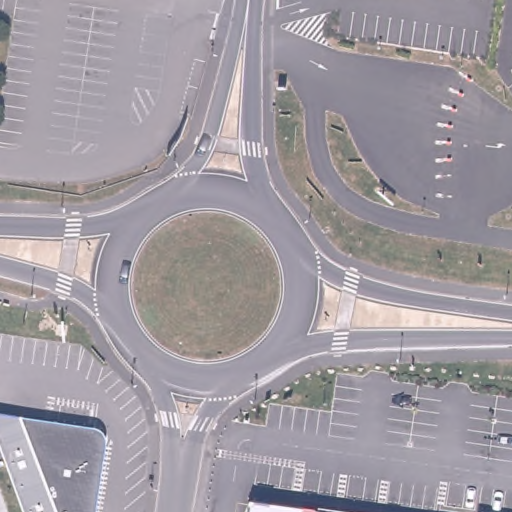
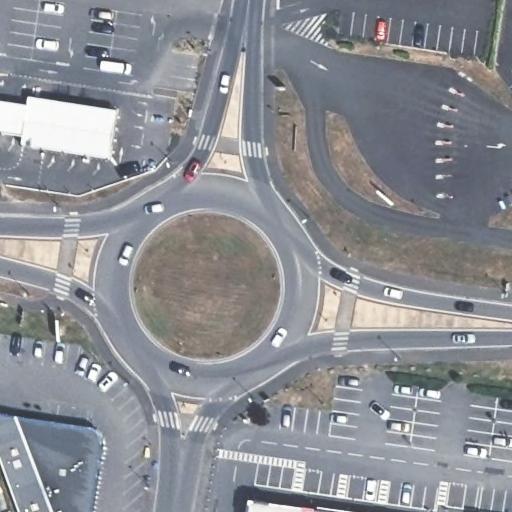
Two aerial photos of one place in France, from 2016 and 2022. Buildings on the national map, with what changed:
new [(29,106),(30,96),(118,110),(110,159),(22,146),(24,137),(0,134),(0,101),(29,106)]
unchanged [(18,416),(56,512),(21,512),(0,454),(0,414),(18,416)]
unchanged [(100,429),(104,432),(106,437),(106,442),(96,512),(56,512),(18,416),(94,427),(100,429)]
unchanged [(338,512),(251,512),(253,500),(338,512)]

